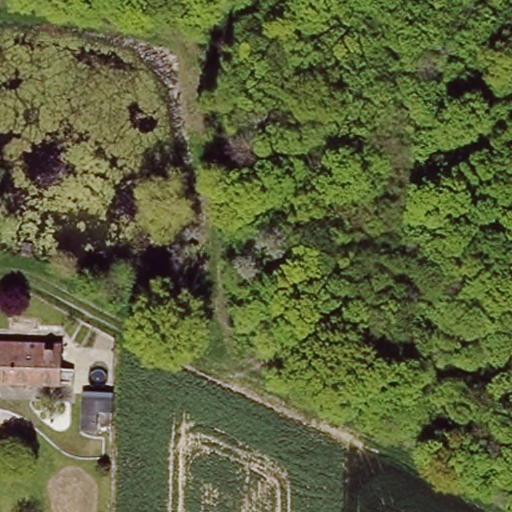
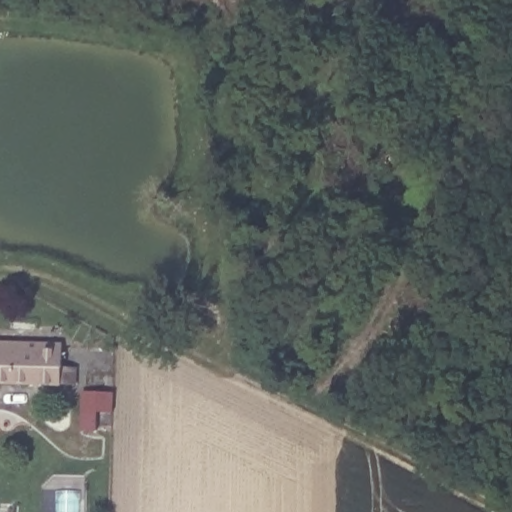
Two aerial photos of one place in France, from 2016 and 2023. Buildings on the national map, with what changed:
unchanged [(55,345),(54,370),(70,370),(69,386),(0,385),(0,344),(55,345)]
unchanged [(101,396),(101,420),(89,419),(89,395),(101,396)]

